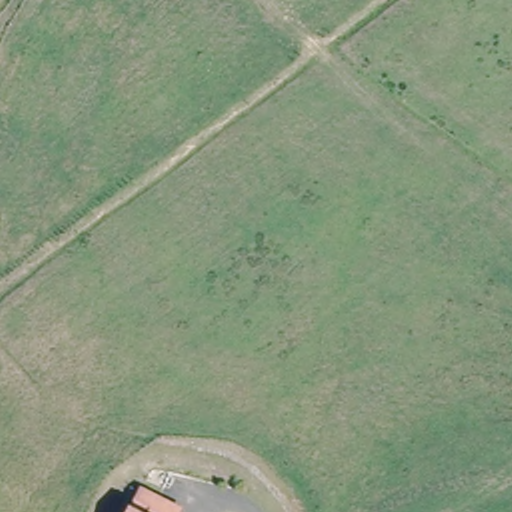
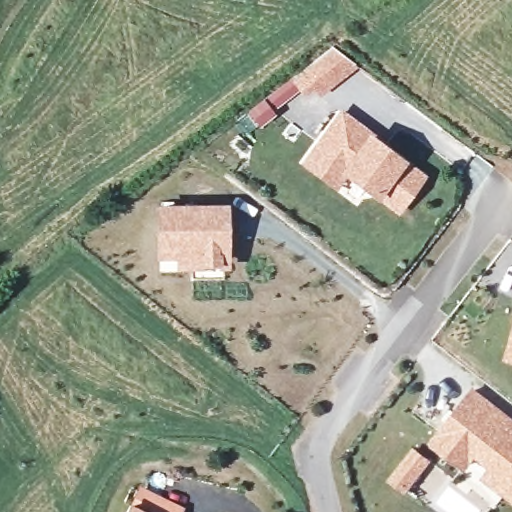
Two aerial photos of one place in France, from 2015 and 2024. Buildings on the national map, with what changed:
new [(320,98),(313,90),(304,97),(291,80),(333,47),(353,72),(320,98)]
new [(425,173),(397,212),(345,175),(336,187),(301,162),(341,110),(425,173)]
new [(229,203),(230,262),(230,267),(177,268),(177,256),(155,257),(156,205),(229,203)]
new [(507,360),(512,343),(512,361),(507,360)]
unchanged [(512,419),(512,500),(481,476),(487,467),(473,456),(465,467),(430,441),(473,387),(512,419)]
new [(416,446),(428,457),(422,463),(407,483),(393,474),(410,453),(416,446)]
unchanged [(129,507),(138,489),(177,510),(176,512),(122,512),(126,506),(129,507)]

